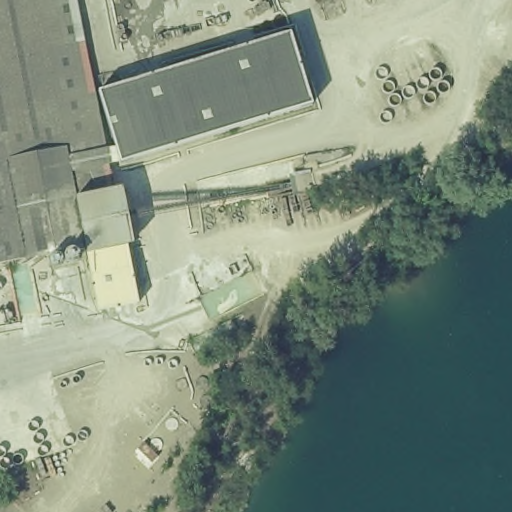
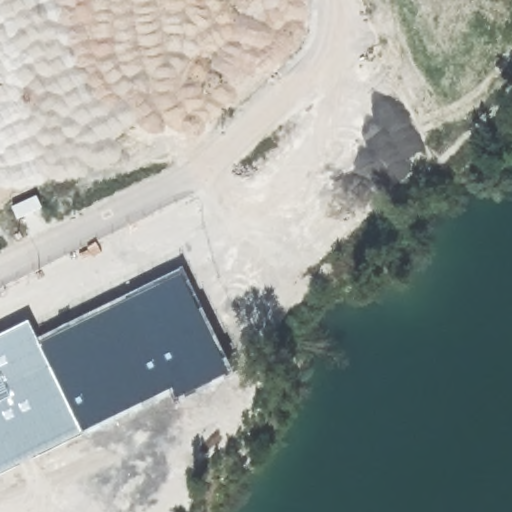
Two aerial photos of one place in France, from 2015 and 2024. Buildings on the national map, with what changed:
demolished [(135,249),(85,259),(81,244),(31,254),(0,261),(0,0),(81,0),(99,84),(113,150),(118,168),(124,189),(135,249)]
demolished [(290,30),(310,103),(118,168),(113,150),(99,84),(290,30)]
new [(36,198),(41,209),(17,219),(12,208),(36,198)]
new [(184,272),(233,377),(177,404),(172,393),(85,436),(40,342),(184,272)]
new [(40,342),(85,436),(0,476),(0,336),(30,322),(40,342)]

